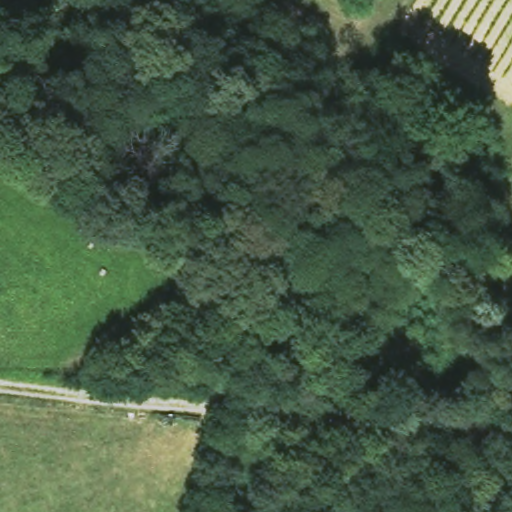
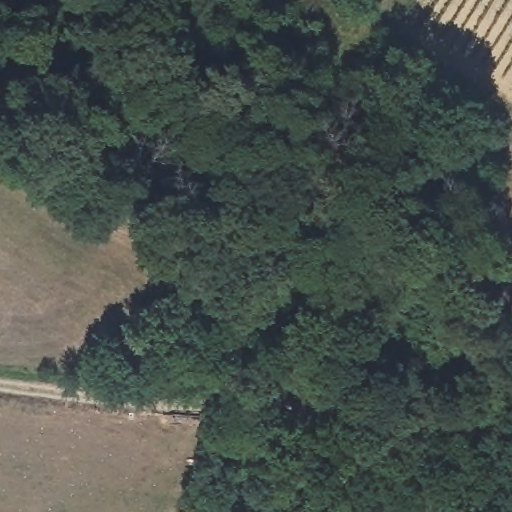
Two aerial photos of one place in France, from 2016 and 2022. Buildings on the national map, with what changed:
unchanged [(200,414),(199,427),(149,424),(149,412),(200,414)]

